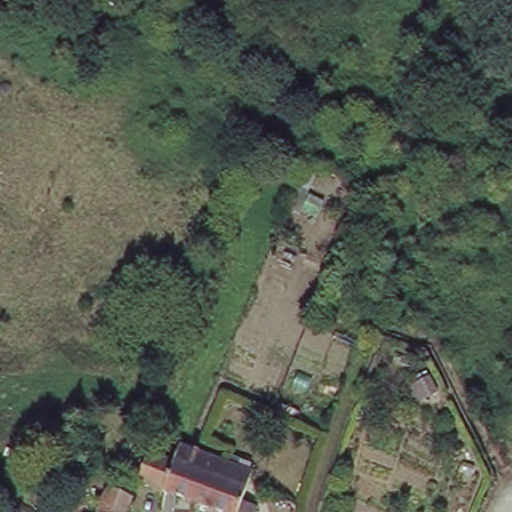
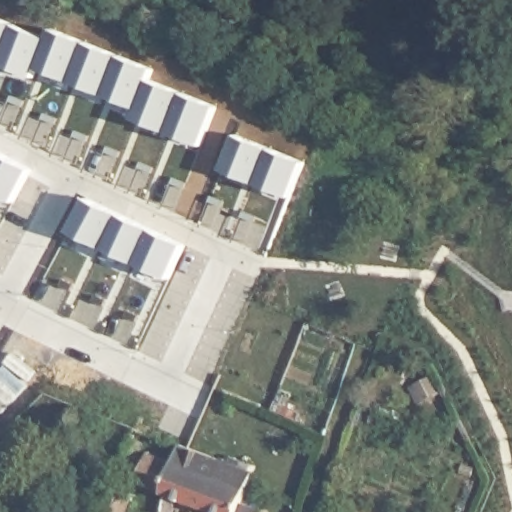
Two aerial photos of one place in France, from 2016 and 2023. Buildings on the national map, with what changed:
new [(49,23),(167,72),(164,81),(216,102),(200,142),(132,115),(136,106),(34,65),(30,76),(0,63),(0,15),(45,32),(49,23)]
new [(300,156),(287,191),(221,166),(235,130),(300,156)]
new [(11,199),(0,194),(0,149),(28,164),(11,199)]
new [(180,241),(165,275),(67,230),(84,196),(180,241)]
unchanged [(386,219),(378,234),(350,220),(357,205),(386,219)]
new [(25,387),(2,414),(0,412),(0,369),(2,367),(25,387)]
unchanged [(421,401),(409,379),(431,367),(442,389),(421,401)]
unchanged [(159,489),(134,479),(144,450),(169,460),(177,441),(184,444),(217,458),(237,466),(240,459),(250,463),(247,470),(252,473),(247,484),(240,504),(255,510),(254,512),(212,512),(197,506),(159,489)]
unchanged [(101,504),(105,493),(110,495),(111,489),(121,493),(118,503),(132,509),(131,512),(103,512),(105,506),(101,504)]

